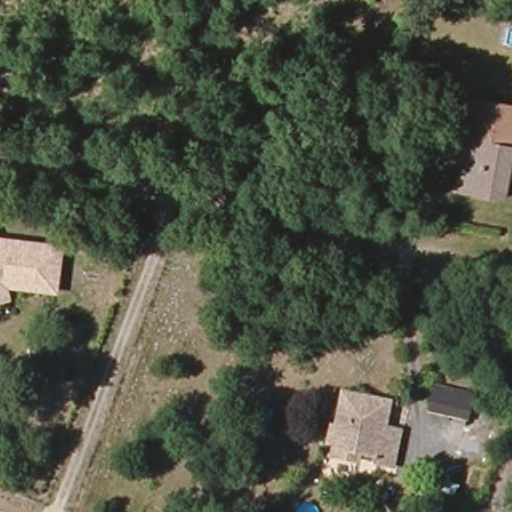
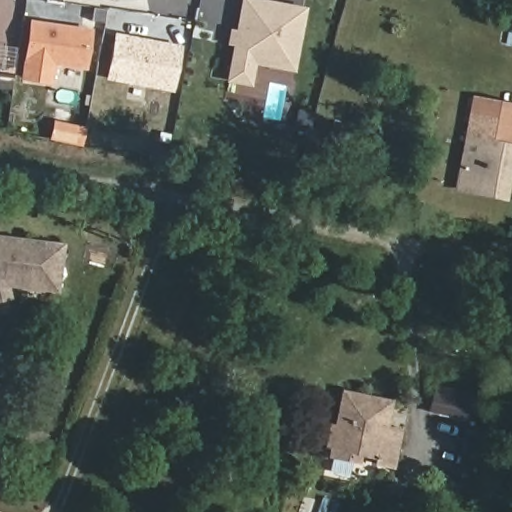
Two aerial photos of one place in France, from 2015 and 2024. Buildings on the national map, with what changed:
new [(266,65),(248,62),(244,84),(224,80),(231,45),(225,44),(227,30),(233,31),(239,0),(247,0),(299,10),(291,52),(287,69),(266,65)]
new [(86,71),(54,67),(52,86),(19,81),(28,20),(92,29),(86,71)]
new [(104,80),(113,35),(181,47),(173,93),(104,80)]
unchanged [(457,192),(474,99),(512,107),(512,167),(507,200),(457,192)]
unchanged [(53,293),(1,284),(0,284),(0,239),(60,249),(53,293)]
unchanged [(475,401),(470,415),(431,406),(436,391),(475,401)]
unchanged [(377,463),(379,460),(353,454),(353,460),(329,455),(343,392),(389,402),(385,427),(402,431),(391,466),(386,465),(377,463)]

